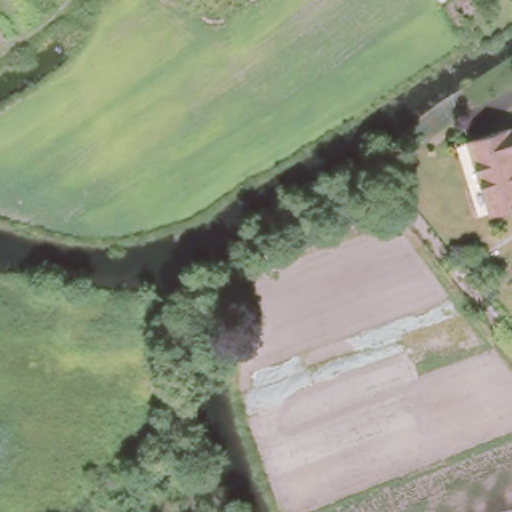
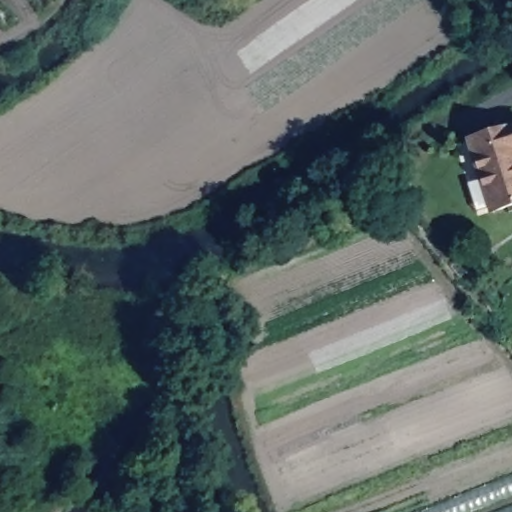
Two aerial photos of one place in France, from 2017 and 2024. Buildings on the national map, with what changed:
unchanged [(512,124),(512,204),(492,211),(467,140),(512,124)]
new [(512,476),(512,512),(422,512),(512,476)]

